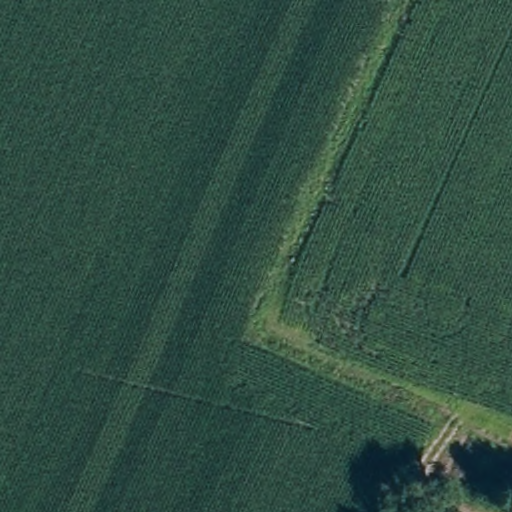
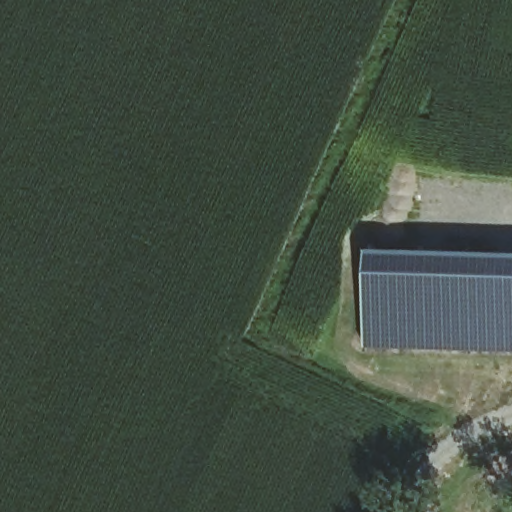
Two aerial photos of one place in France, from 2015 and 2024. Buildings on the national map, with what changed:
new [(368,245),(512,249),(512,351),(365,345),(368,245)]

